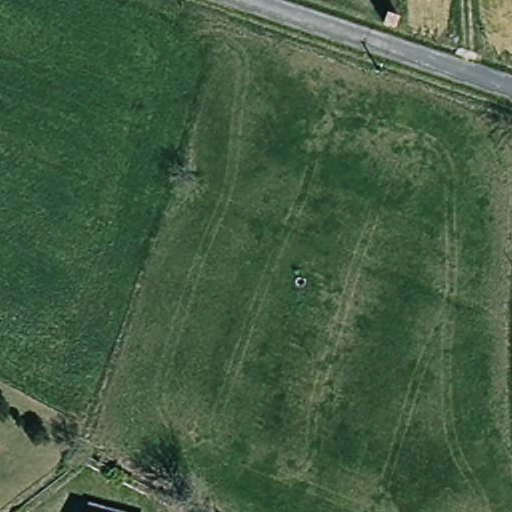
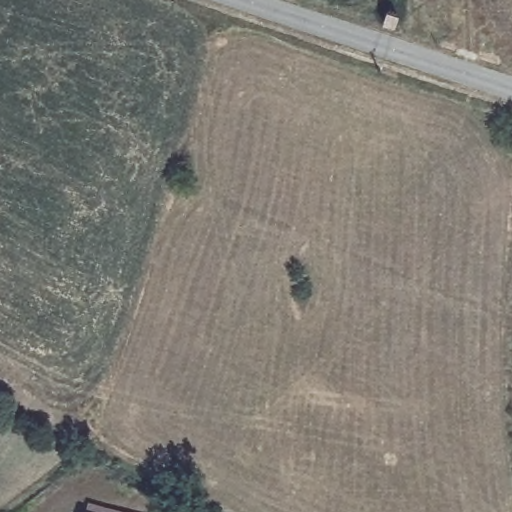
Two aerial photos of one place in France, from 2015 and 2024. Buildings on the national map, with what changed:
unchanged [(89,502),(125,512),(86,512),(89,502)]

